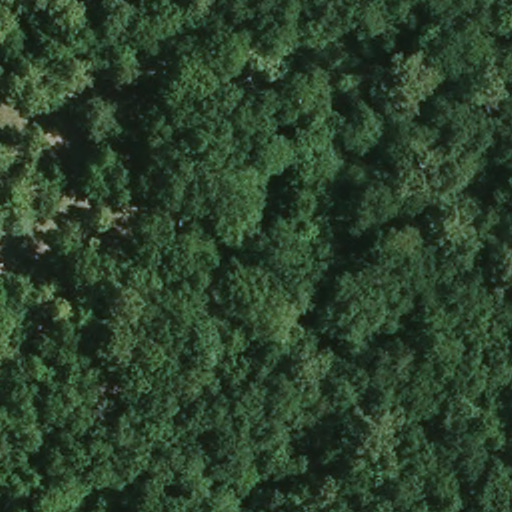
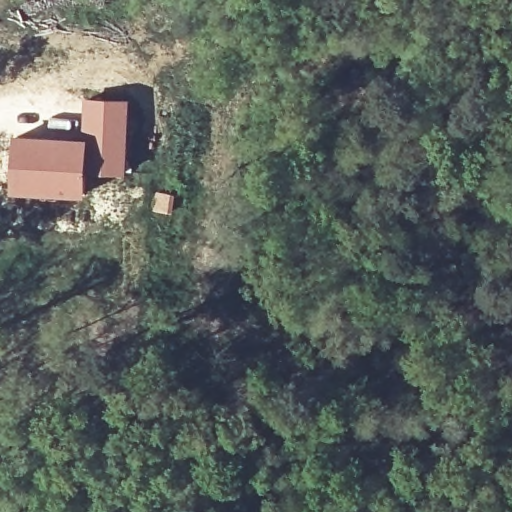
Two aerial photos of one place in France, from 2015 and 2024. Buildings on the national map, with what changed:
new [(83,97),(130,98),(126,173),(88,172),(87,135),(82,135),(83,97)]
new [(14,134),(82,135),(87,135),(88,172),(86,196),(11,193),(14,134)]

